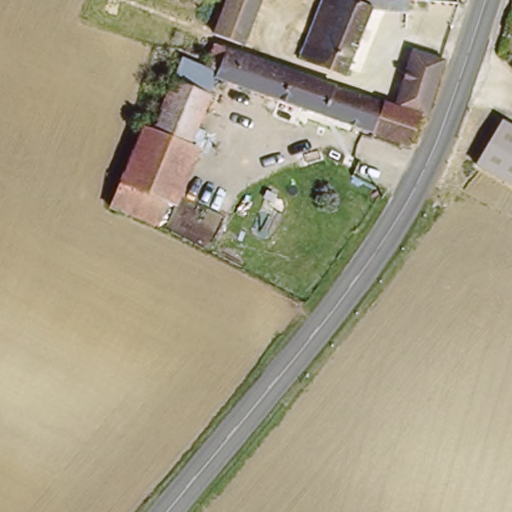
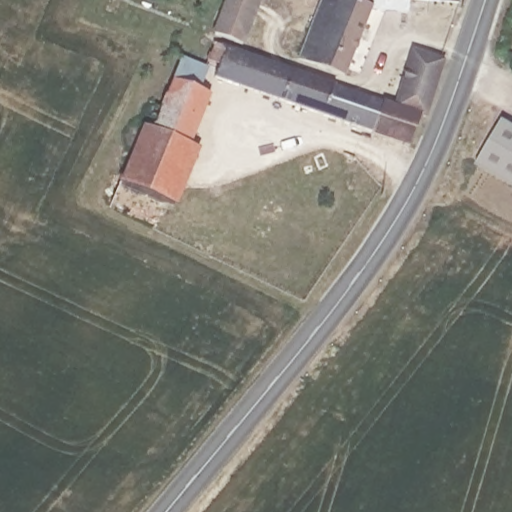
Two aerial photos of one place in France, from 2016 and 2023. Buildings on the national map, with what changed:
unchanged [(218,31),(232,0),(263,0),(246,42),(218,31)]
unchanged [(344,0),(358,4),(359,0),(381,0),(412,3),(410,18),(373,15),(348,80),(287,58),(298,31),(315,38),(329,0),(344,0)]
unchanged [(410,0),(425,0),(425,2),(410,0)]
unchanged [(220,78),(192,147),(149,131),(160,104),(170,108),(190,63),(211,70),(221,46),(386,104),(375,136),(220,78)]
unchanged [(447,59),(428,116),(423,114),(408,148),(375,136),(386,104),(398,108),(417,49),(447,59)]
unchanged [(512,121),(512,191),(473,169),(507,119),(512,121)]
unchanged [(192,147),(201,150),(180,204),(171,201),(127,184),(149,131),(192,147)]
unchanged [(171,201),(161,227),(117,210),(127,184),(171,201)]

